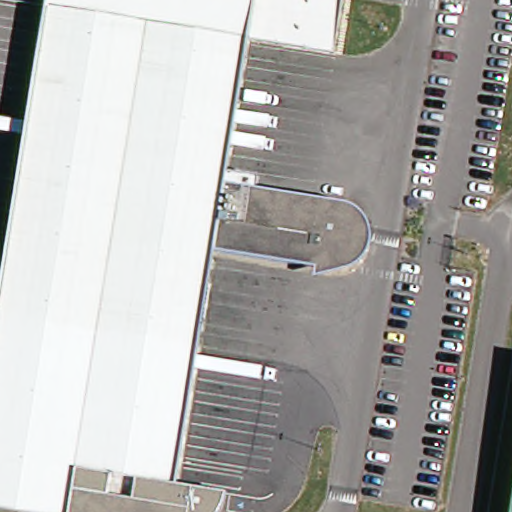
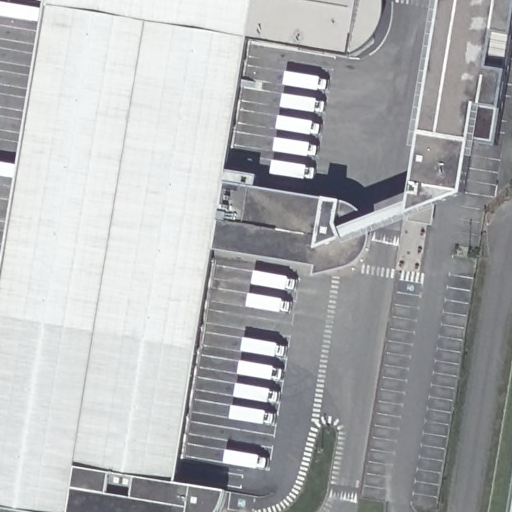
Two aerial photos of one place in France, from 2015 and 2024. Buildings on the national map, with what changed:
unchanged [(347,213),(354,219),(359,227),(360,235),(359,242),(357,249),(352,255),(346,259),(339,262),(330,262),(313,260),(312,267),(209,251),(171,483),(182,485),(178,512),(19,512),(0,509),(0,256),(41,0),(336,0),(327,52),(240,38),(218,170),(251,176),(250,187),(337,201),(336,209),(347,213)]
new [(512,0),(512,65),(504,111),(498,145),(473,141),(466,193),(412,214),(445,0),(512,0)]
unchanged [(512,512),(511,512),(512,509),(512,512)]

